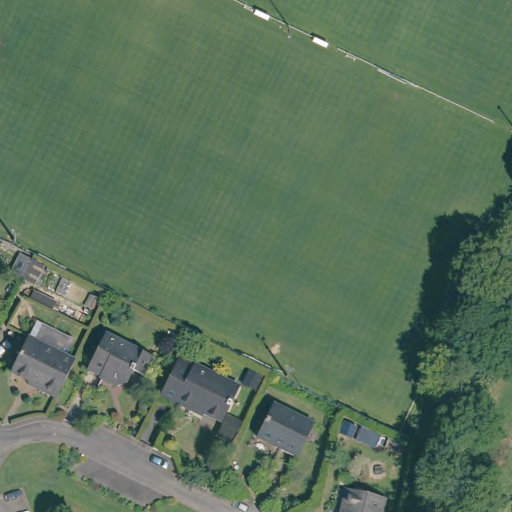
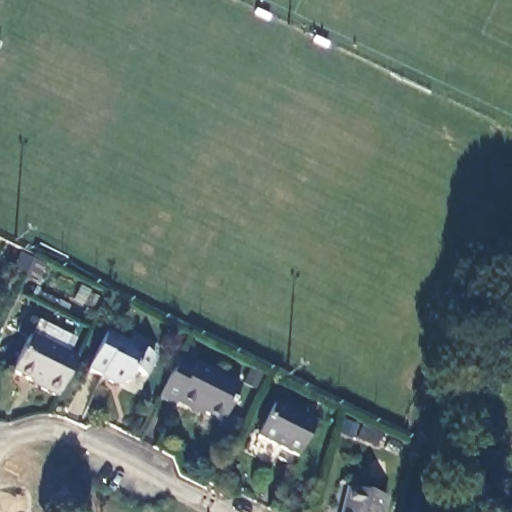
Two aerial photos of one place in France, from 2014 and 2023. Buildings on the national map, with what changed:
unchanged [(157,355),(146,376),(135,371),(131,380),(117,385),(109,381),(111,378),(90,368),(109,331),(157,355)]
unchanged [(33,378),(15,369),(33,334),(78,357),(59,395),(44,387),(32,381),(33,378)]
unchanged [(172,407),(155,398),(177,355),(237,385),(221,419),(216,427),(172,407)]
unchanged [(313,422),(297,454),(257,435),(273,403),(313,422)]
unchanged [(382,512),(342,512),(347,492),(385,501),(382,512)]

